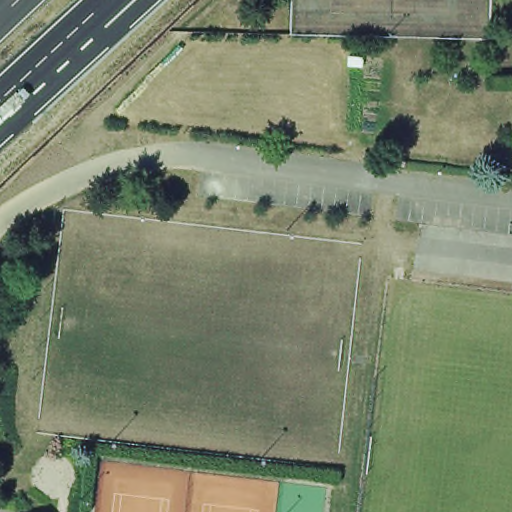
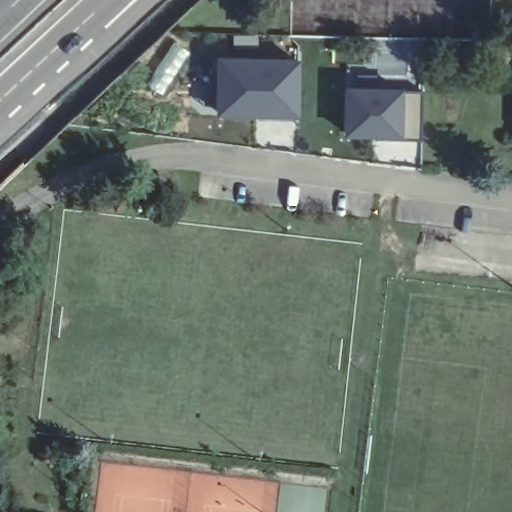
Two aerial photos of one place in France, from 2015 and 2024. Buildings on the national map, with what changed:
new [(302,55),(300,114),(217,113),(217,55),(302,55)]
new [(402,82),(402,88),(420,88),(421,137),(343,135),(342,84),(402,82)]

